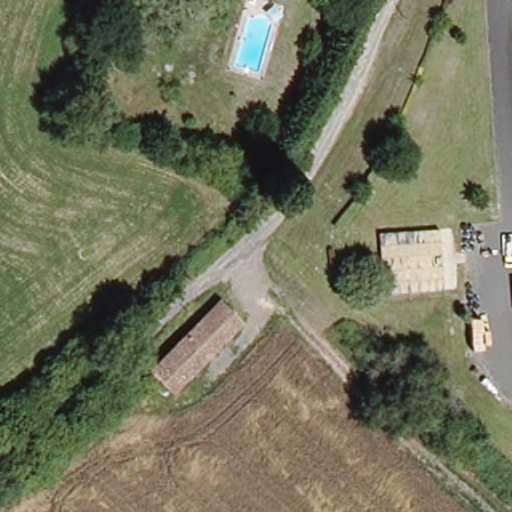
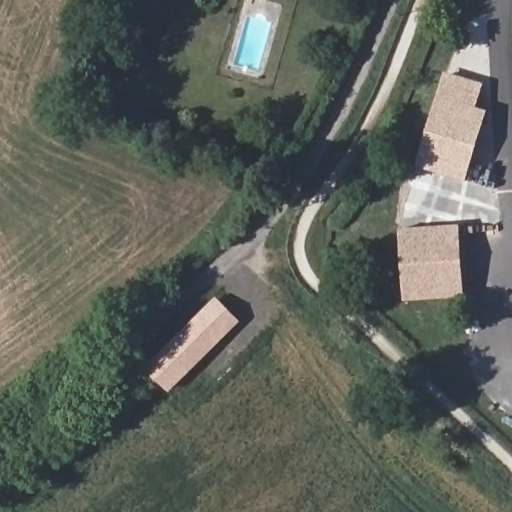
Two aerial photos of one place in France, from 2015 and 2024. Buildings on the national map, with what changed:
new [(491,88),(461,183),(415,169),(442,73),(491,88)]
new [(457,224),(464,293),(402,300),(398,229),(457,224)]
unchanged [(236,319),(169,390),(145,371),(212,298),(236,319)]

